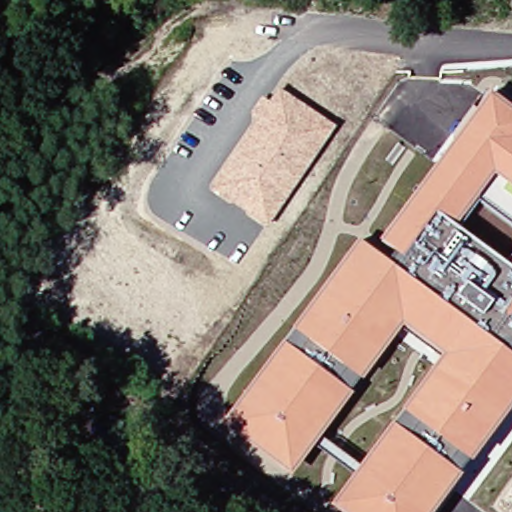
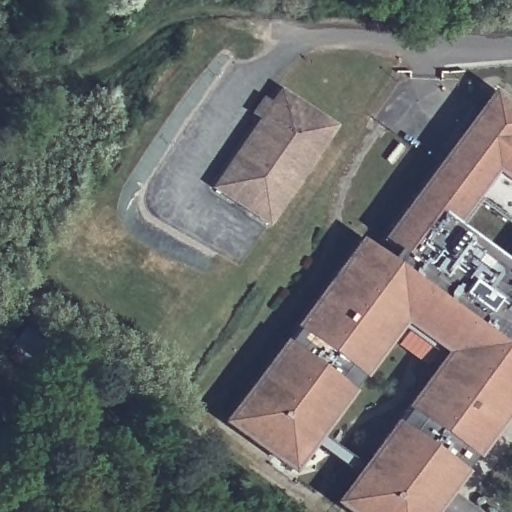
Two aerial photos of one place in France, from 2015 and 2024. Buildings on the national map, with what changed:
unchanged [(338,126),(269,229),(209,189),(257,120),(250,115),(262,97),(269,101),(279,89),(338,126)]
unchanged [(433,512),(338,512),(329,505),(441,354),(404,325),(292,477),(220,423),(359,237),(389,258),(394,250),(380,240),(454,138),(451,135),(474,104),(478,106),(491,89),(512,104),(512,224),(479,200),(459,226),(507,260),(512,253),(512,408),(433,512)]

